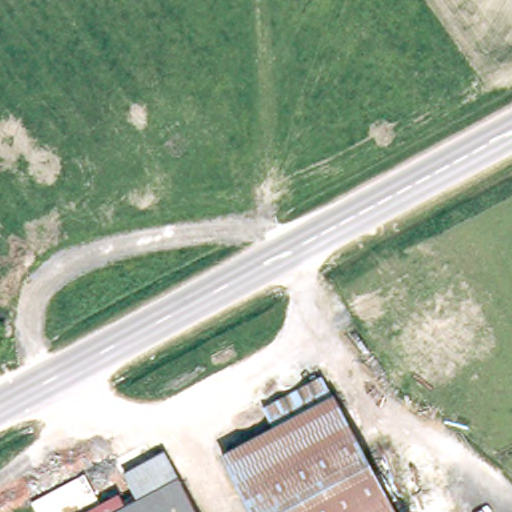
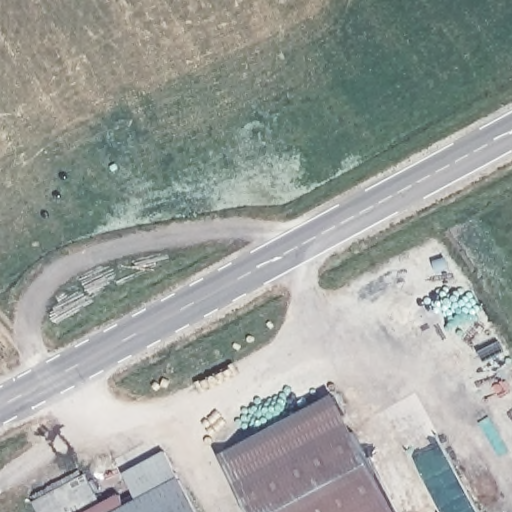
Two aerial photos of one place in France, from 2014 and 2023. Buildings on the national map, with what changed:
unchanged [(261,406),(320,372),(332,393),(272,426),(261,406)]
unchanged [(396,512),(250,512),(219,455),(272,426),(332,393),(396,512)]
unchanged [(121,472),(161,451),(176,478),(136,499),(121,472)]
unchanged [(194,512),(113,512),(136,499),(176,478),(194,512)]
unchanged [(119,493),(123,506),(113,512),(86,512),(119,493)]

